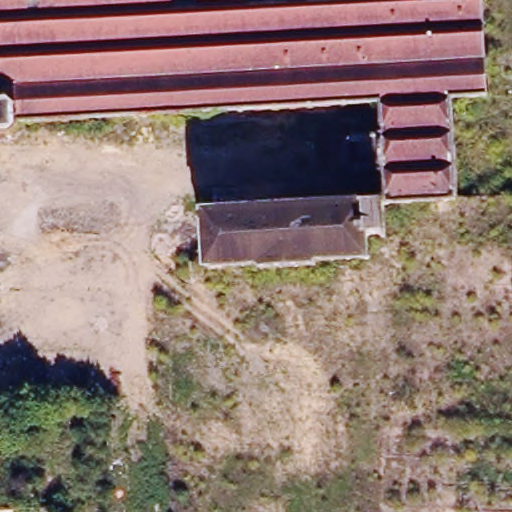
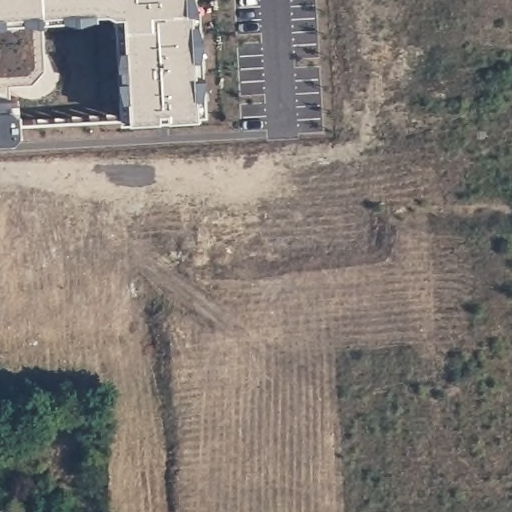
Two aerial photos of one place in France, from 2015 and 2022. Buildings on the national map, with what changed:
new [(193,5),(199,5),(202,109),(122,115),(115,12),(100,7),(100,1),(92,2),(93,12),(80,16),(62,12),(62,7),(42,9),(42,17),(45,68),(32,82),(10,83),(10,98),(0,99),(0,0),(193,0),(193,5)]
demolished [(475,96),(443,98),(445,142),(447,197),(378,201),(377,170),(375,132),(373,101),(18,118),(8,129),(0,130),(0,0),(472,0),(475,96)]
new [(17,106),(20,126),(12,132),(0,133),(0,99),(10,98),(17,106)]
demolished [(347,172),(339,163),(338,143),(346,135),(375,132),(377,170),(347,172)]
demolished [(378,201),(383,241),(371,243),(371,260),(314,261),(314,273),(257,275),(257,264),(205,269),(197,210),(378,201)]
unchanged [(50,510),(50,512),(39,512),(39,510),(50,510)]

